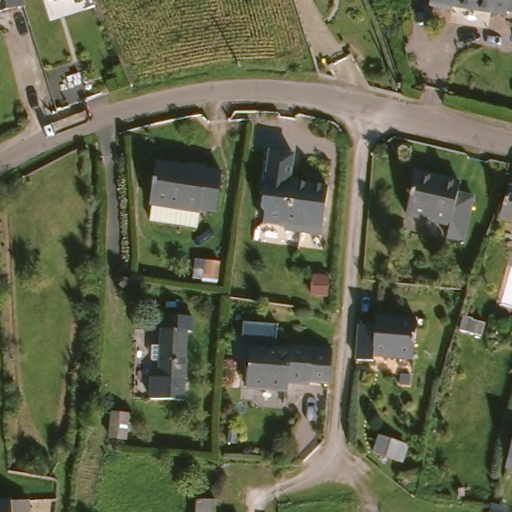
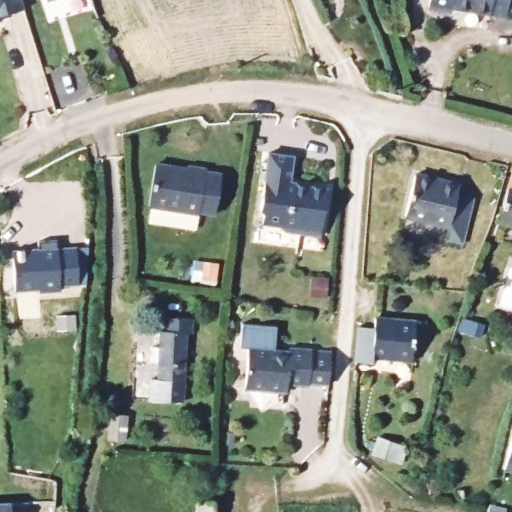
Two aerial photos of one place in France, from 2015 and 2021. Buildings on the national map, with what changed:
unchanged [(4,9),(5,13),(0,14),(0,0),(26,0),(27,2),(4,9)]
unchanged [(437,0),(512,0),(512,12),(512,15),(459,7),(458,11),(436,7),(437,0)]
unchanged [(293,151),(289,177),(307,181),(327,184),(319,230),(299,227),(284,225),(281,220),(262,217),(264,207),(260,203),(269,147),(293,151)]
unchanged [(152,212),(155,195),(161,154),(189,157),(190,155),(210,157),(210,160),(223,162),(217,201),(203,200),(202,202),(200,219),(152,212)]
unchanged [(452,177),(450,188),(465,192),(455,231),(439,227),(441,216),(398,205),(408,166),(452,177)]
unchanged [(512,173),(512,222),(501,220),(512,173)]
new [(40,242),(59,242),(59,250),(78,247),(78,252),(93,252),(92,280),(80,281),(81,286),(62,287),(63,292),(41,293),(41,291),(17,292),(14,247),(40,245),(40,242)]
unchanged [(309,288),(310,270),(327,271),(325,290),(309,288)]
unchanged [(383,320),(383,310),(424,313),(421,353),(382,350),(381,356),(364,354),(366,327),(367,318),(383,320)]
unchanged [(487,317),(483,332),(462,325),(466,311),(487,317)]
unchanged [(190,315),(189,330),(184,329),(182,400),(150,398),(151,377),(158,377),(159,327),(159,322),(167,322),(167,315),(190,315)]
unchanged [(289,340),(311,342),(331,344),(328,378),(302,376),(302,380),(289,378),(287,377),(286,385),(281,385),(246,382),(249,339),(274,342),(274,347),(283,347),(288,347),(289,340)]
unchanged [(125,411),(124,436),(107,436),(109,410),(125,411)]
unchanged [(374,448),(379,432),(398,439),(404,441),(399,457),(394,455),(374,448)]
unchanged [(22,495),(22,512),(0,512),(0,496),(22,495)]
unchanged [(210,497),(209,512),(192,512),(194,496),(210,497)]

